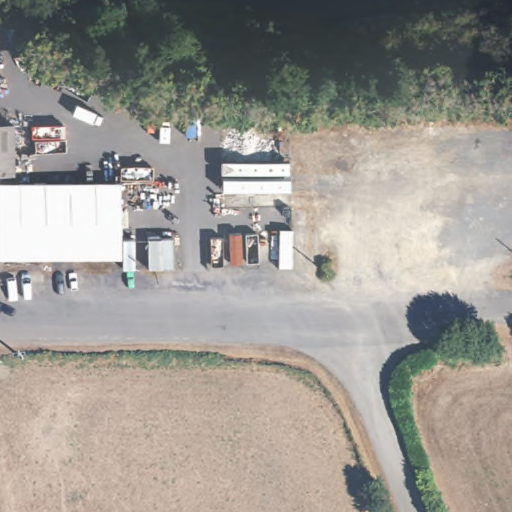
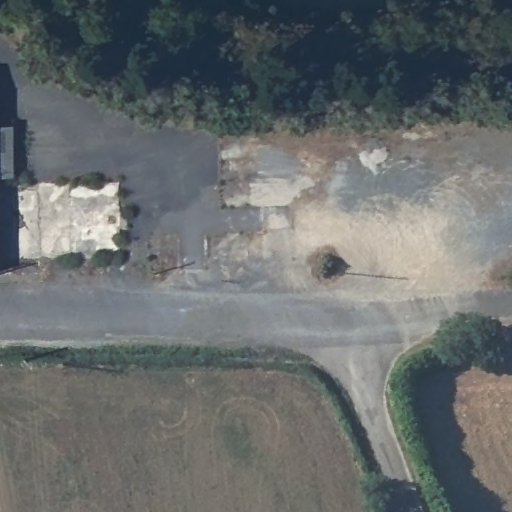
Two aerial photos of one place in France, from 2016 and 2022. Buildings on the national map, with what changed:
demolished [(122,260),(0,260),(0,186),(119,181),(122,260)]

